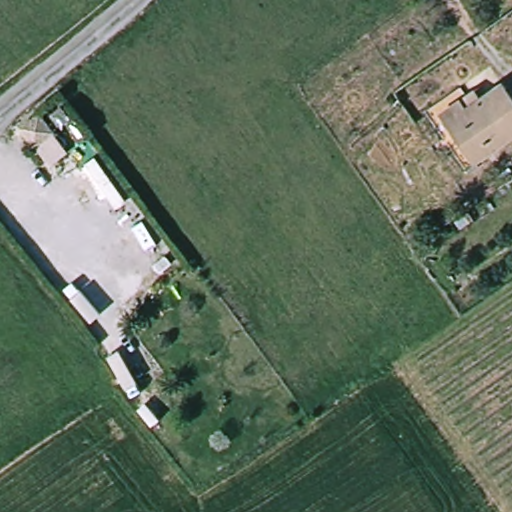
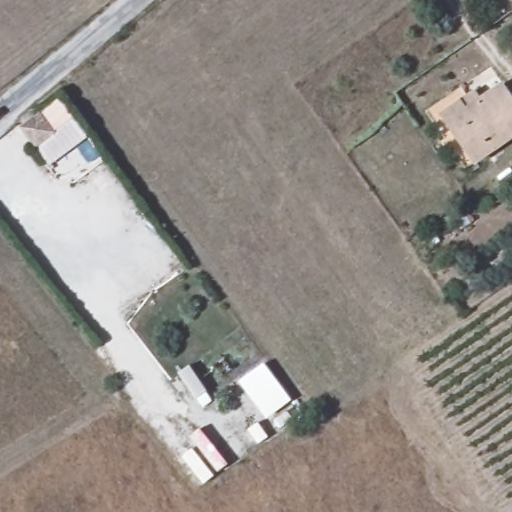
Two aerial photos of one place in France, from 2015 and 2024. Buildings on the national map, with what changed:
unchanged [(512,97),(512,135),(475,161),(441,113),(467,95),(474,104),(502,84),(512,97)]
unchanged [(53,131),(35,144),(22,126),(41,114),(53,131)]
new [(239,381),(264,363),(292,400),(266,419),(239,381)]

